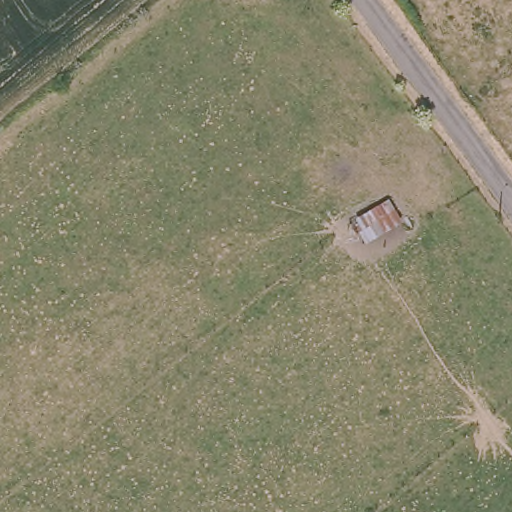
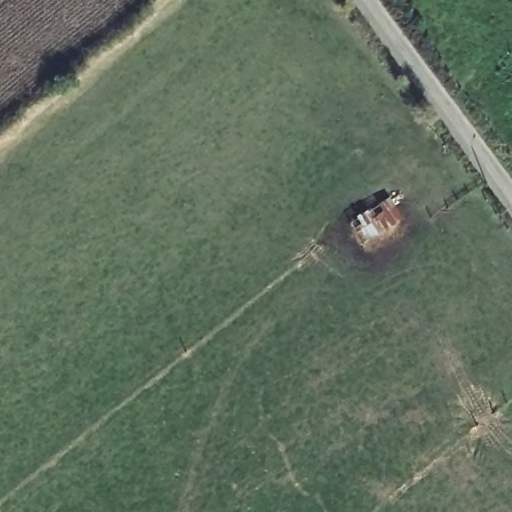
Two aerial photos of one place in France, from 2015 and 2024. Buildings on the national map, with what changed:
unchanged [(408,221),(366,248),(348,218),(388,194),(408,221)]

